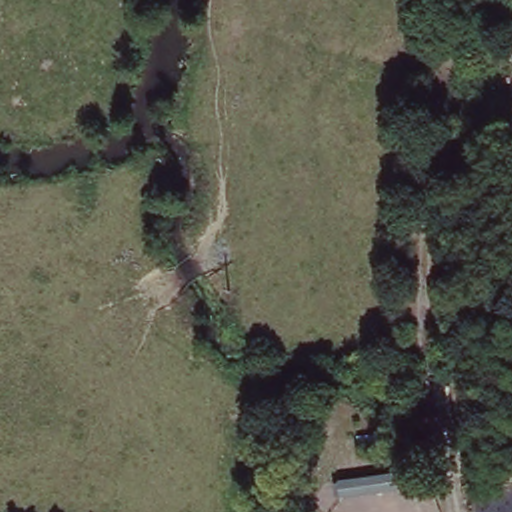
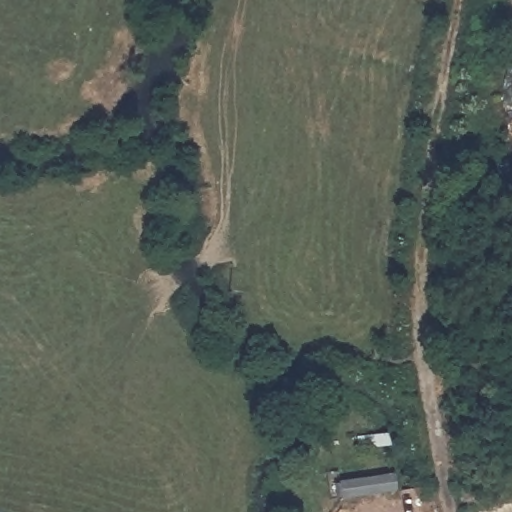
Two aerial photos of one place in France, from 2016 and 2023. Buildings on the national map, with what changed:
unchanged [(512,489),(512,512),(468,512),(463,495),(512,489)]

